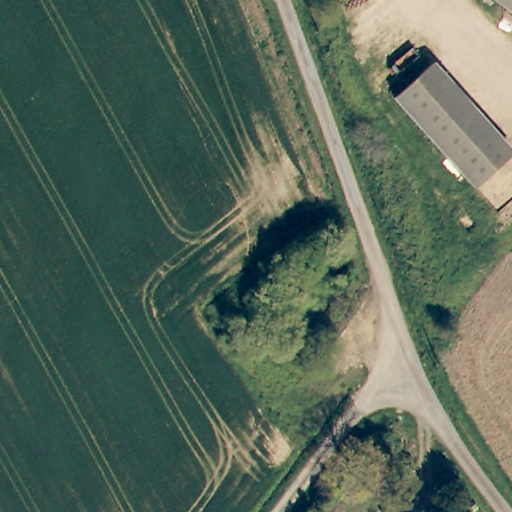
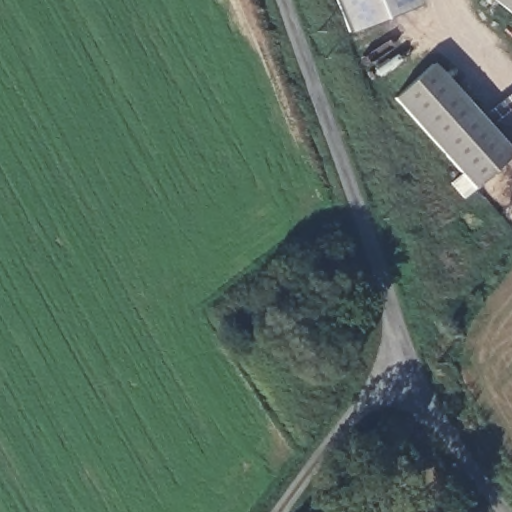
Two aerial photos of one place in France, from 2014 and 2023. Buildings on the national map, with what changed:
new [(418,5),(346,34),(333,0),(416,0),(418,5)]
unchanged [(488,0),(512,0),(512,21),(488,0)]
unchanged [(512,157),(474,191),(395,100),(433,65),(512,157)]

